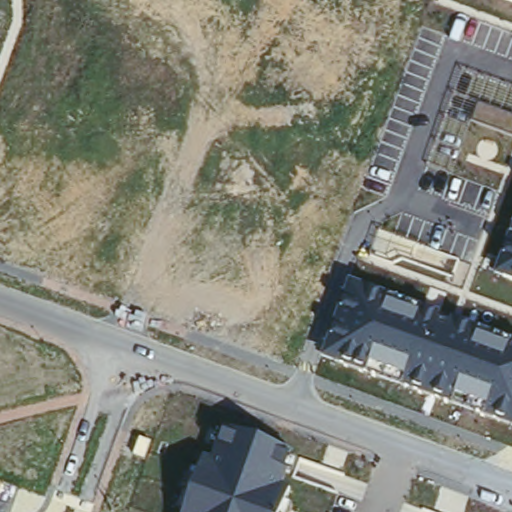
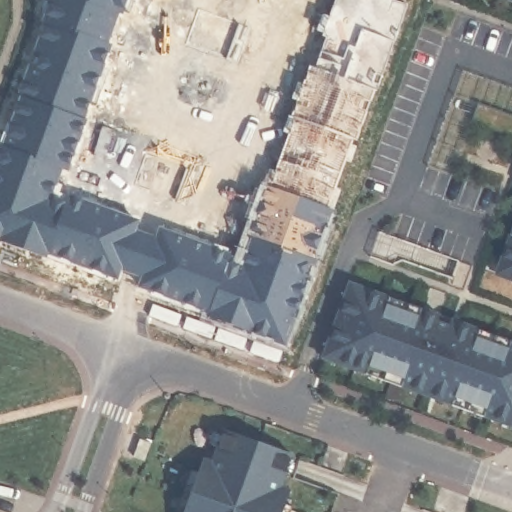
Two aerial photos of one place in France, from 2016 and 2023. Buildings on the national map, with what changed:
new [(58,189),(137,217),(115,280),(0,241),(0,137),(47,0),(127,0),(58,189)]
new [(159,228),(233,256),(233,258),(245,263),(252,238),(247,236),(269,181),(276,184),(340,0),(374,0),(410,13),(286,342),(140,287),(159,228)]
new [(481,106),(512,117),(512,138),(474,124),(481,106)]
unchanged [(494,275),(512,223),(512,282),(494,275)]
unchanged [(512,338),(512,429),(320,358),(349,282),(512,338)]
unchanged [(284,487),(290,488),(282,512),(183,512),(203,456),(211,458),(222,426),(295,453),(284,487)]

